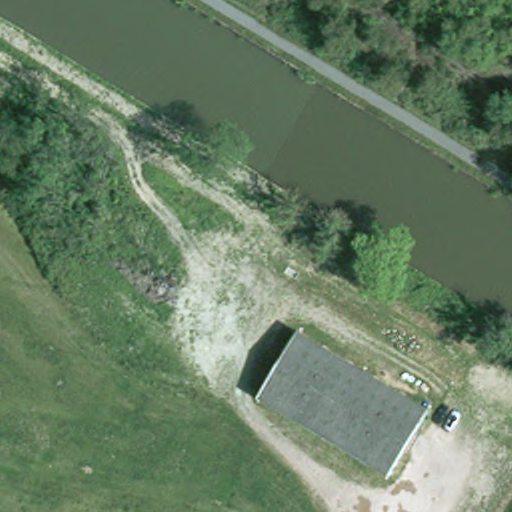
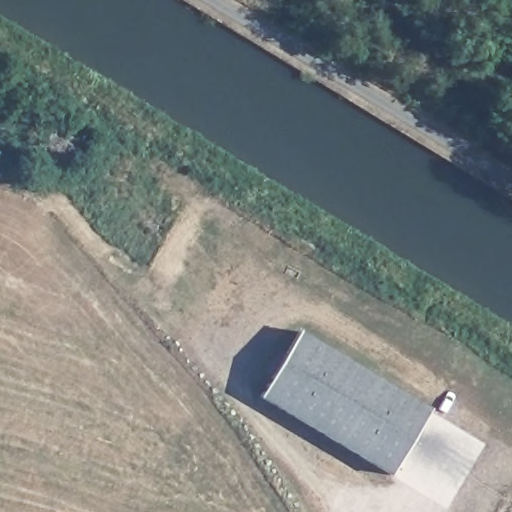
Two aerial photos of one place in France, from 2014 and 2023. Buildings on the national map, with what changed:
unchanged [(397,474),(266,395),(305,330),(436,408),(397,474)]

